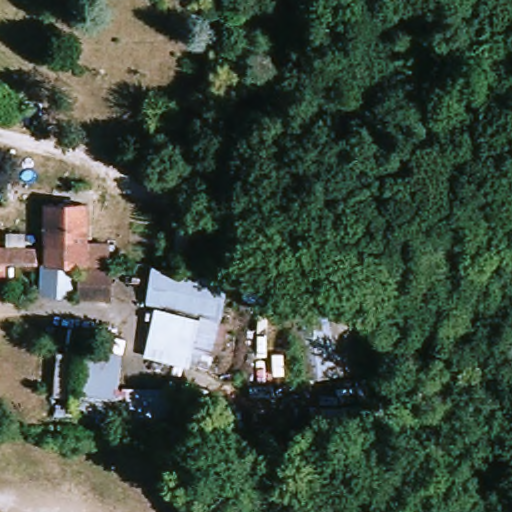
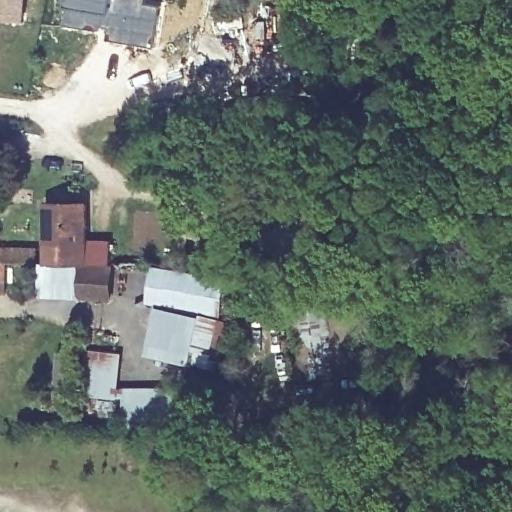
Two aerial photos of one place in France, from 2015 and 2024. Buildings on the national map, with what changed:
new [(0,22),(0,0),(24,0),(23,22),(0,22)]
new [(115,0),(109,30),(65,24),(69,0),(115,0)]
new [(115,0),(147,0),(146,1),(163,4),(155,47),(107,39),(109,30),(115,0)]
unchanged [(79,263),(45,262),(45,246),(45,201),(90,202),(90,240),(110,241),(113,264),(79,263)]
unchanged [(3,244),(45,246),(43,260),(8,260),(0,260),(0,227),(2,227),(3,244)]
unchanged [(0,292),(0,260),(8,260),(7,292),(0,292)]
unchanged [(40,295),(40,262),(45,262),(79,263),(79,283),(79,297),(40,295)]
unchanged [(112,298),(79,297),(79,283),(79,263),(113,264),(112,298)]
unchanged [(217,368),(178,358),(181,346),(155,339),(165,304),(148,301),(155,264),(228,277),(223,318),(231,321),(217,368)]
unchanged [(293,306),(331,304),(332,310),(356,309),(364,373),(302,379),(293,306)]
unchanged [(121,387),(173,385),(176,428),(118,430),(74,426),(75,415),(67,414),(69,392),(83,393),(89,350),(123,352),(121,387)]

